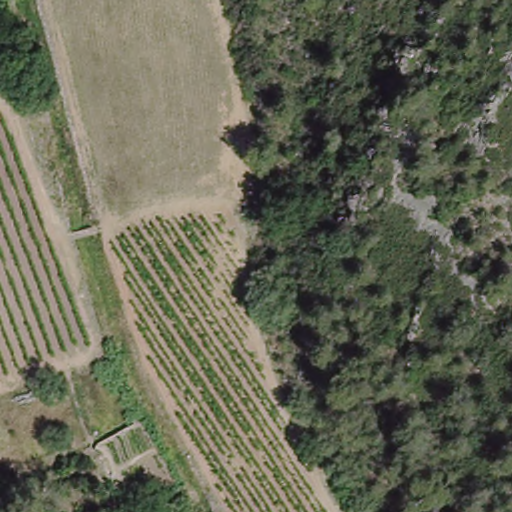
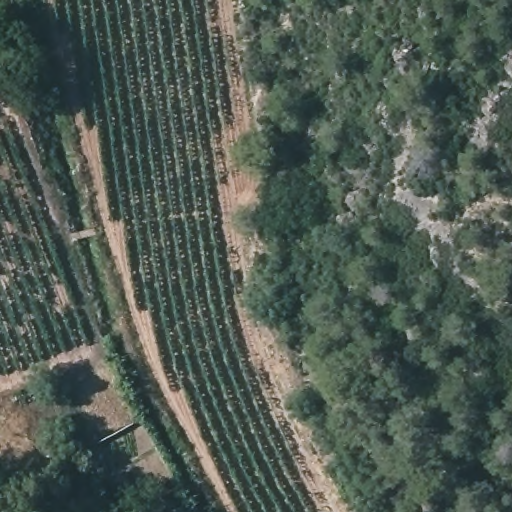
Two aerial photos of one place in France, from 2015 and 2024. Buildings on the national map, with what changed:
[]

